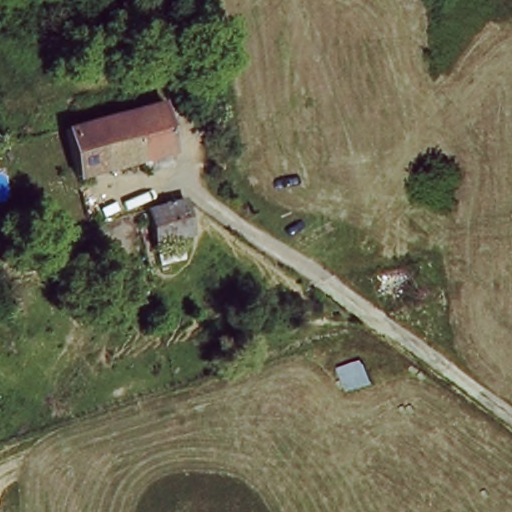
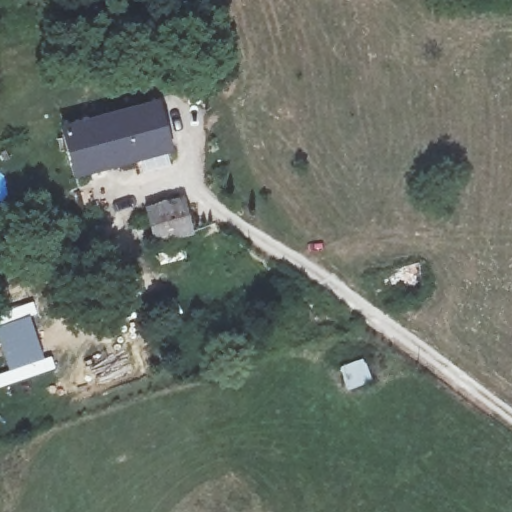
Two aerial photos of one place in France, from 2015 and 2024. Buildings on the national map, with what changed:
unchanged [(162,105),(178,154),(78,178),(63,131),(162,105)]
unchanged [(148,213),(186,204),(194,235),(158,245),(148,213)]
new [(45,357),(11,370),(0,340),(0,327),(30,316),(45,357)]

